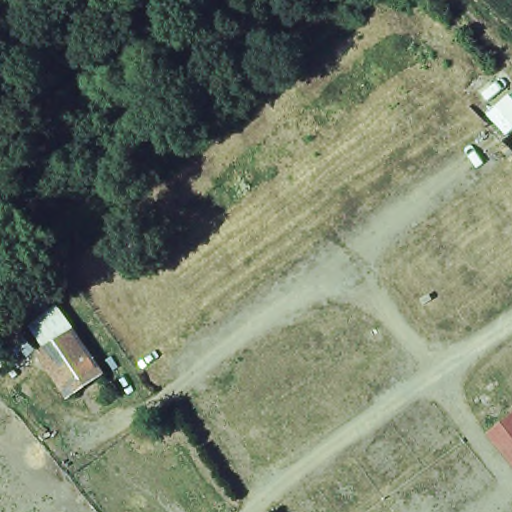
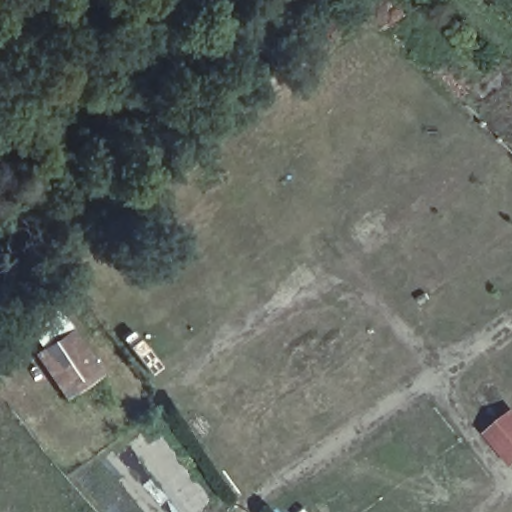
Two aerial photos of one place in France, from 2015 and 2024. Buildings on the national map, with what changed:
unchanged [(101,373),(62,398),(32,352),(70,326),(101,373)]
unchanged [(512,427),(512,461),(490,433),(507,421),(512,427)]

